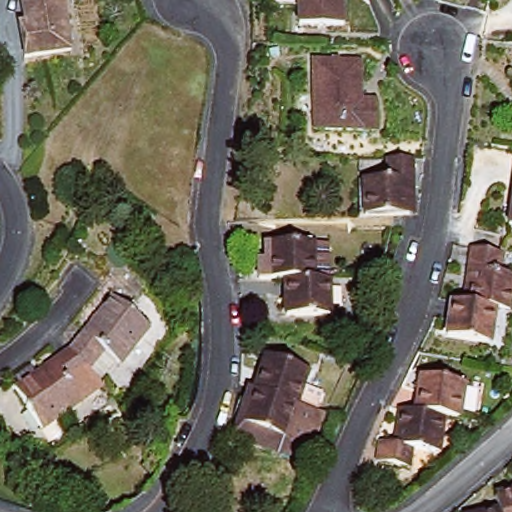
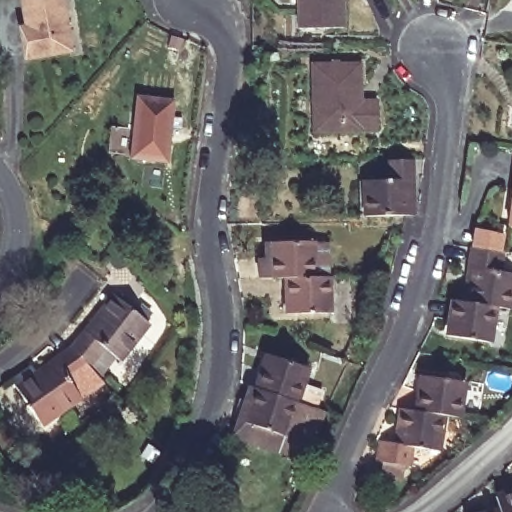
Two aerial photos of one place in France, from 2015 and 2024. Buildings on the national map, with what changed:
unchanged [(25,26),(19,0),(62,0),(72,51),(30,59),(25,60),(18,27),(25,26)]
unchanged [(347,0),(348,21),(304,23),(303,0),(347,0)]
unchanged [(381,100),(382,130),(320,132),(318,65),(365,64),(365,100),(381,100)]
new [(174,99),(166,162),(130,158),(138,94),(174,99)]
unchanged [(391,180),(390,160),(417,159),(418,215),(369,217),(368,181),(391,180)]
unchanged [(512,199),(512,226),(508,225),(512,199)]
unchanged [(270,242),(330,241),(331,277),(285,278),(270,278),(270,242)]
unchanged [(501,306),(471,301),(476,265),(472,265),(475,245),(506,250),(503,270),(512,271),(512,308),(501,306)]
unchanged [(331,313),(285,313),(285,278),(331,277),(331,313)]
unchanged [(121,293),(160,323),(130,361),(127,359),(110,380),(80,346),(121,293)]
unchanged [(496,341),(450,335),(456,300),(471,301),(501,306),(496,341)]
unchanged [(276,345),(318,359),(307,393),(265,378),(276,345)]
unchanged [(19,380),(40,365),(45,372),(80,346),(110,380),(114,383),(53,426),(19,380)]
unchanged [(421,410),(426,375),(470,381),(465,416),(450,415),(421,410)]
unchanged [(318,450),(242,425),(257,376),(265,378),(307,393),(296,426),(323,436),(318,450)]
unchanged [(307,393),(335,402),(323,436),(296,426),(307,393)]
unchanged [(415,465),(383,460),(386,441),(401,443),(405,408),(421,410),(450,415),(445,450),(417,446),(415,465)]
unchanged [(504,510),(500,495),(512,492),(512,512),(505,512),(504,510)]
unchanged [(505,512),(494,512),(504,510),(505,512)]

